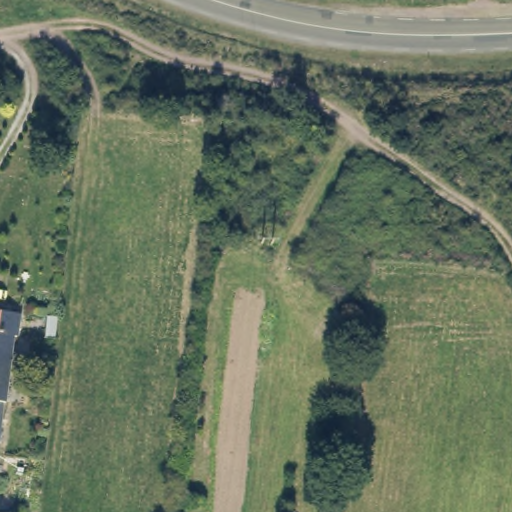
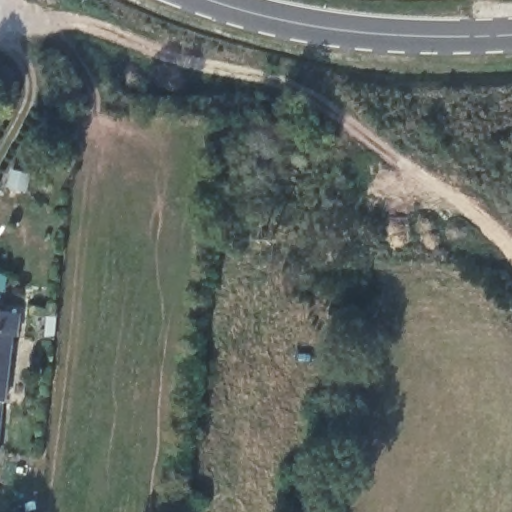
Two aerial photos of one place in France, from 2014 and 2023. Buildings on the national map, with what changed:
unchanged [(24,317),(21,340),(14,340),(6,403),(0,402),(0,313),(24,317)]

